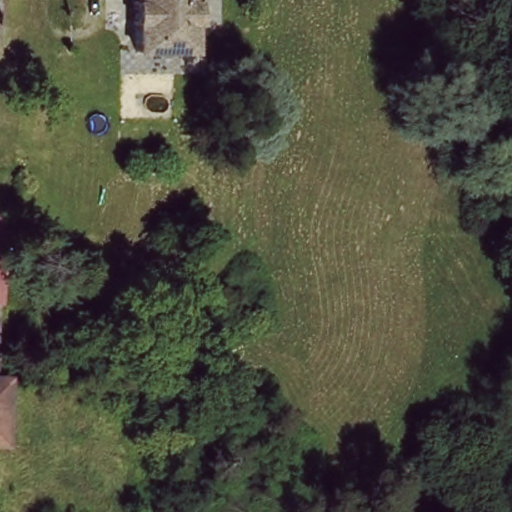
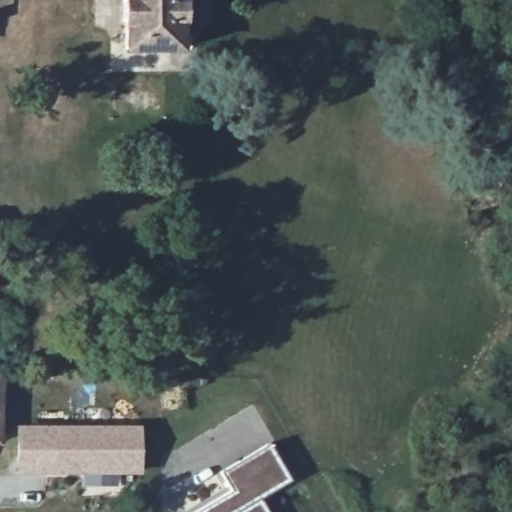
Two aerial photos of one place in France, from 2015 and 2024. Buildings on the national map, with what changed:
unchanged [(130,28),(124,29),(123,2),(129,1),(129,0),(191,0),(193,26),(186,25),(188,53),(132,56),(130,28)]
unchanged [(0,400),(0,377),(1,377),(0,400)]
new [(18,426),(142,426),(142,476),(18,476),(18,426)]
new [(233,491),(222,472),(270,444),(293,481),(262,499),(270,512),(198,512),(233,491)]

